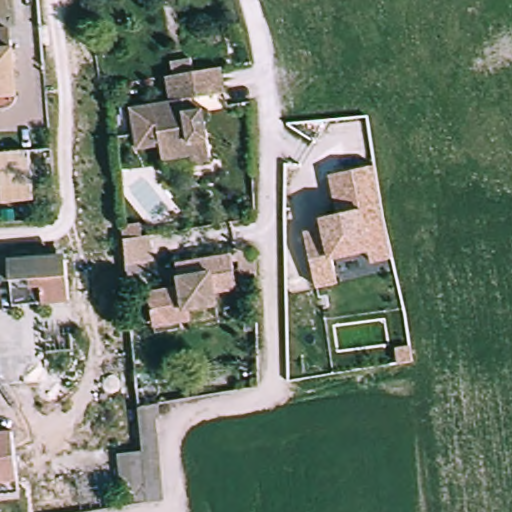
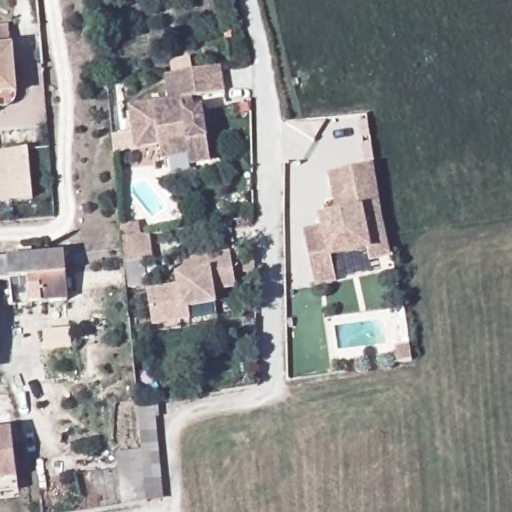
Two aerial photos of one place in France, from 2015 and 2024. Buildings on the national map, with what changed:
unchanged [(8,37),(10,56),(11,76),(13,101),(0,102),(0,38),(8,37)]
unchanged [(185,169),(185,163),(157,166),(156,150),(131,151),(126,111),(164,105),(161,79),(218,71),(221,100),(179,105),(181,118),(198,116),(202,143),(204,167),(185,169)]
unchanged [(29,149),(34,200),(0,203),(0,152),(29,149)]
unchanged [(392,238),(372,242),(373,247),(334,255),(339,279),(326,282),(318,283),(307,230),(321,227),(326,226),(324,214),(341,211),(333,172),(377,163),(388,216),(392,238)]
unchanged [(146,232),(148,261),(133,263),(123,264),(120,235),(130,234),(146,232)]
unchanged [(62,297),(36,299),(35,274),(0,276),(0,255),(59,251),(62,297)]
unchanged [(228,260),(232,292),(212,295),(214,310),(173,316),(174,325),(150,329),(146,297),(177,292),(174,268),(228,260)]
unchanged [(155,505),(142,507),(131,411),(142,410),(146,409),(155,505)]
unchanged [(16,424),(20,476),(20,483),(0,485),(0,426),(16,424)]
unchanged [(123,472),(125,507),(84,512),(80,512),(80,477),(123,472)]

